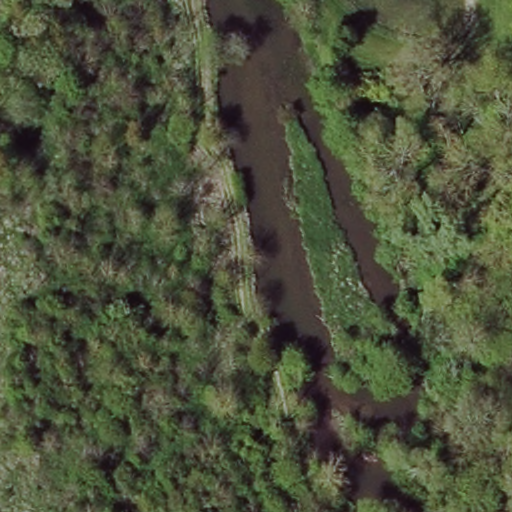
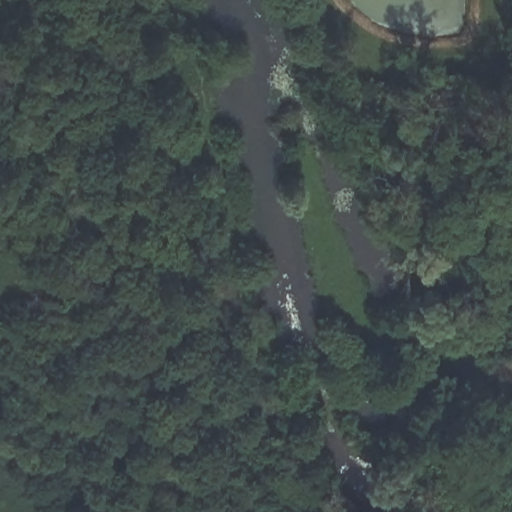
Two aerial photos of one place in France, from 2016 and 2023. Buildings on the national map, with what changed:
[]

